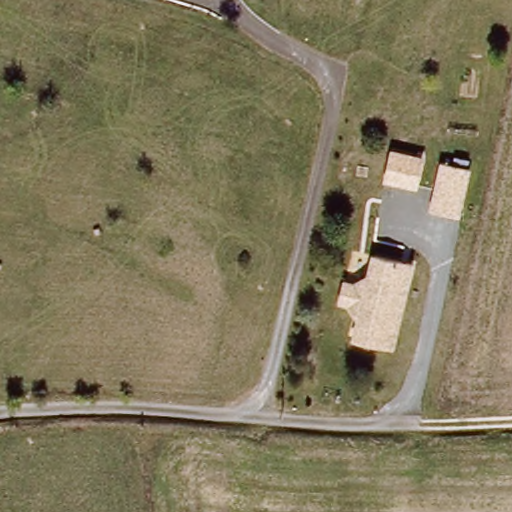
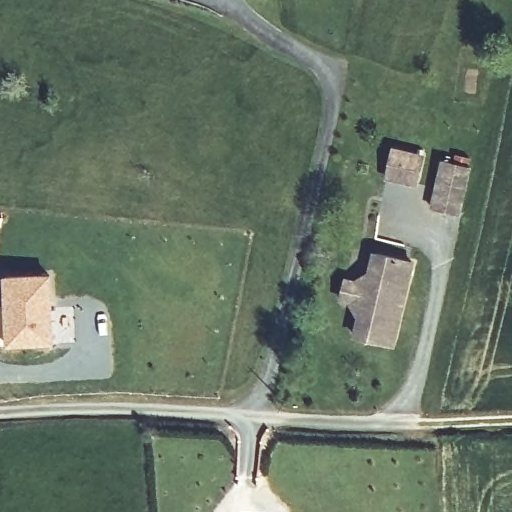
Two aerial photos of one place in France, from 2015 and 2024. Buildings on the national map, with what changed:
unchanged [(417,158),(411,186),(381,179),(388,152),(417,158)]
unchanged [(470,165),(460,210),(431,204),(441,158),(470,165)]
unchanged [(361,314),(352,301),(342,300),(347,278),(356,280),(370,271),(375,251),(405,258),(413,260),(395,342),(388,341),(357,334),(361,314)]
new [(4,279),(50,277),(52,344),(7,346),(0,346),(0,309),(5,309),(4,279)]

